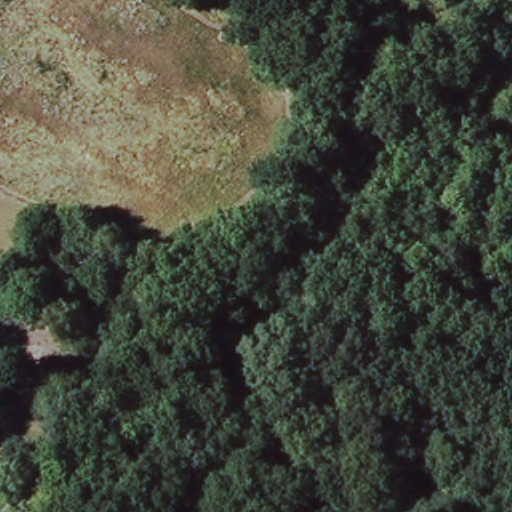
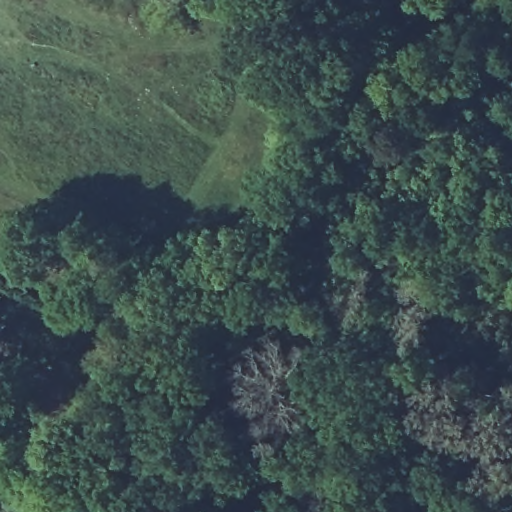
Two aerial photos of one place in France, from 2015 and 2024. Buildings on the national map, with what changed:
[]

